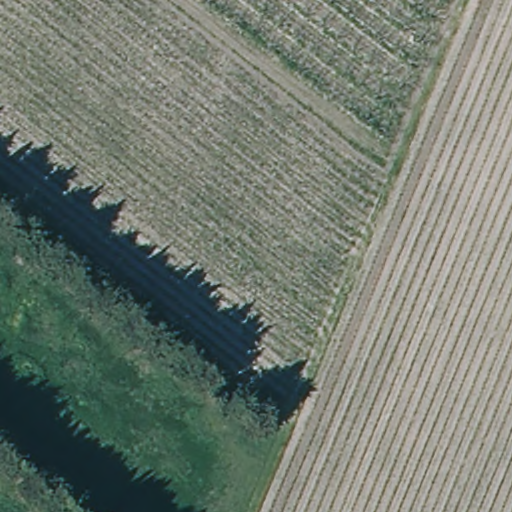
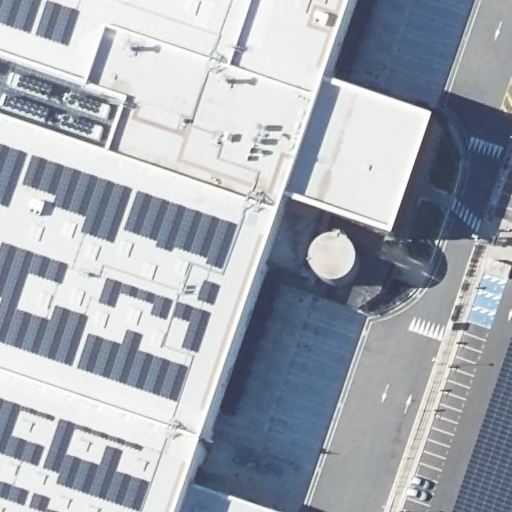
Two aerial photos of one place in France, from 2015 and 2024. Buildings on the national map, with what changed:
new [(439,127),(400,245),(292,207),(195,495),(250,512),(0,512),(0,0),(364,0),(332,91),(439,127)]

